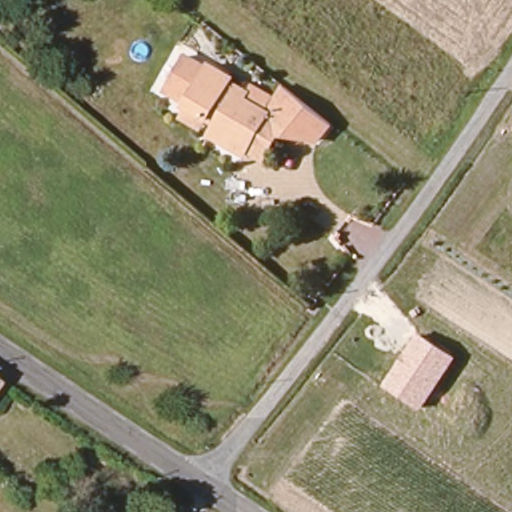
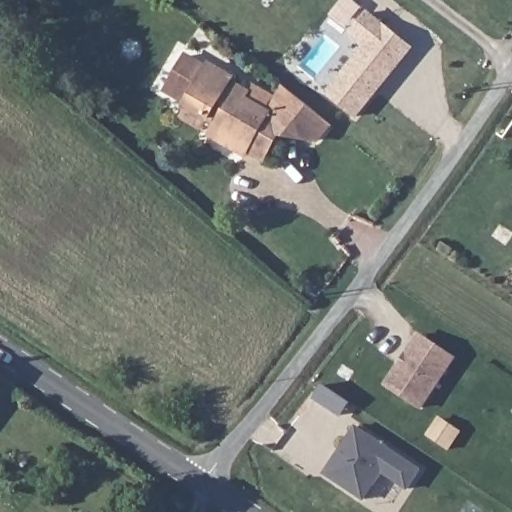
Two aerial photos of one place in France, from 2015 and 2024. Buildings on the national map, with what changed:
new [(356,118),(324,92),(363,45),(349,33),(368,11),(414,47),(356,118)]
unchanged [(219,61),(240,74),(238,76),(256,87),(254,92),(277,107),(288,93),(310,112),(335,132),(325,144),(287,132),(272,156),(254,144),(250,150),(220,132),(224,122),(216,116),(210,126),(190,112),(195,103),(219,61)]
unchanged [(421,411),(384,385),(419,334),(457,357),(421,411)]
new [(349,398),(339,412),(314,395),(323,382),(349,398)]
new [(330,462),(355,424),(420,467),(407,486),(382,470),(364,497),(330,475),(324,471),(330,462)]
demolished [(1,512),(0,512),(0,511),(1,512)]

